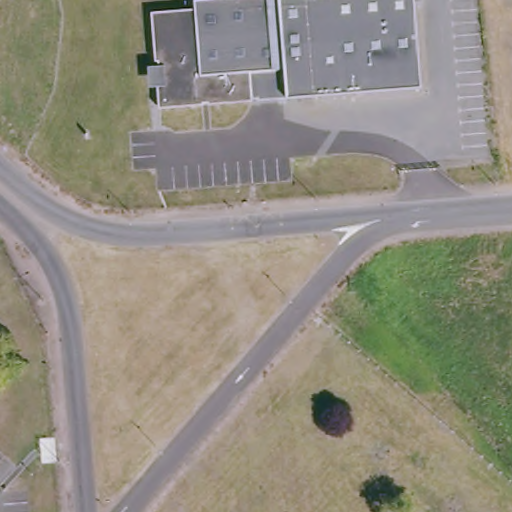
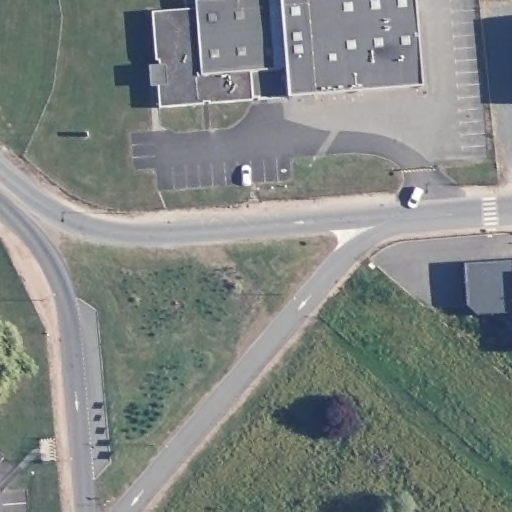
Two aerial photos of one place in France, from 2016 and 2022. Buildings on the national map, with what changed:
unchanged [(148,84),(146,64),(144,65),(140,14),(183,10),(182,1),(203,0),(426,0),(433,88),(147,110),(145,84),(148,84)]
new [(466,303),(463,264),(512,261),(512,313),(476,314),(466,303)]

